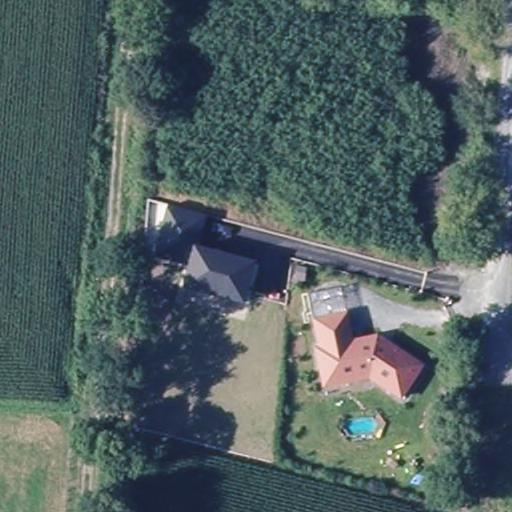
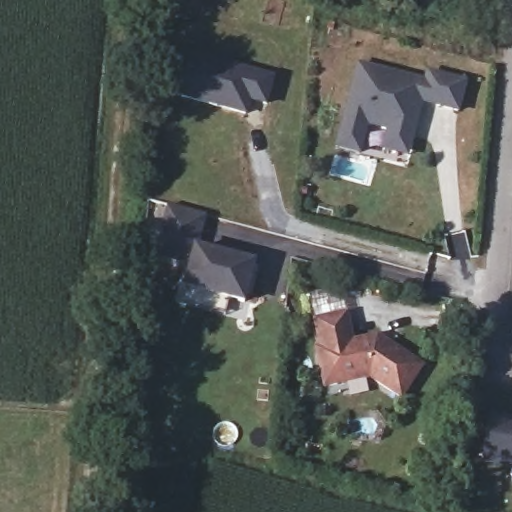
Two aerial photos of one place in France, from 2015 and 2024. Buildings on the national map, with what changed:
new [(182,56),(273,81),(266,108),(251,104),(247,117),(170,96),(182,56)]
new [(368,119),(361,147),(338,141),(360,59),(427,76),(430,66),(467,76),(460,105),(422,96),(413,130),(408,150),(385,143),(390,124),(368,119)]
unchanged [(197,250),(257,265),(248,305),(228,300),(225,317),(185,307),(186,293),(192,265),(158,259),(169,207),(205,214),(197,250)]
new [(344,279),(347,299),(313,304),(310,284),(344,279)]
unchanged [(347,312),(355,341),(380,336),(427,367),(402,402),(368,381),(323,391),(315,352),(320,351),(314,319),(347,312)]
new [(512,415),(512,460),(487,456),(493,412),(512,415)]

